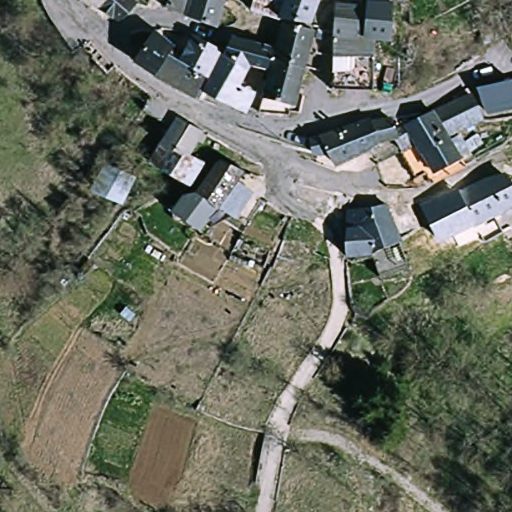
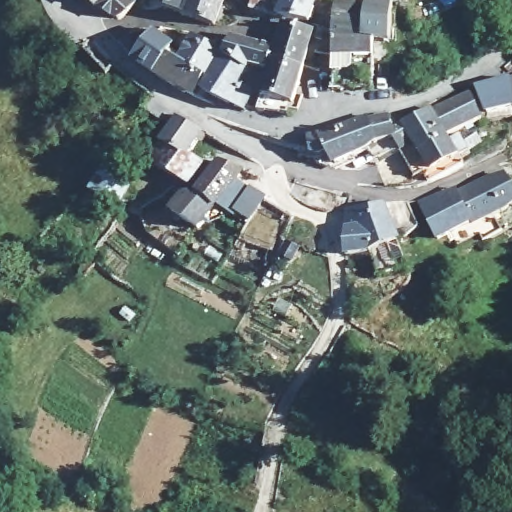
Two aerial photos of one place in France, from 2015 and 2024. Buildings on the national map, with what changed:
unchanged [(106,15),(102,20),(93,11),(97,7),(89,0),(127,0),(133,6),(116,23),(106,15)]
unchanged [(170,0),(222,0),(219,8),(214,28),(181,16),(166,10),(170,0)]
unchanged [(250,10),(253,0),(285,0),(283,16),(250,10)]
unchanged [(283,16),(285,0),(314,0),(309,20),(283,16)]
unchanged [(315,58),(320,30),(334,32),(335,5),(335,2),(366,5),(369,0),(394,2),(394,40),(374,38),(372,58),(369,95),(336,95),(327,95),(330,76),(332,61),(332,58),(315,58)]
unchanged [(512,34),(512,50),(506,38),(485,48),(474,29),(507,17),(512,34)]
unchanged [(271,68),(250,63),(249,65),(243,89),(254,92),(248,111),(244,110),(222,100),(216,109),(195,99),(155,74),(144,68),(140,57),(158,37),(170,47),(173,53),(182,62),(194,40),(218,60),(204,84),(208,88),(225,58),(233,38),(277,49),(285,21),(314,29),(304,69),(296,102),(285,101),(283,112),(268,113),(258,113),(263,96),(271,68)]
unchanged [(512,73),(512,103),(493,106),(488,107),(479,84),(486,82),(507,75),(512,73)]
unchanged [(431,139),(416,148),(412,140),(402,142),(396,123),(426,108),(471,90),(484,115),(448,131),(431,139)]
unchanged [(367,112),(370,118),(391,113),(396,123),(402,142),(383,148),(377,140),(353,153),(339,163),(330,162),(315,157),(312,153),(323,145),(321,129),(339,123),(367,112)]
unchanged [(187,185),(178,180),(150,161),(161,141),(168,126),(174,118),(200,134),(185,155),(201,164),(187,185)]
unchanged [(416,184),(407,163),(420,156),(416,148),(431,139),(448,131),(456,149),(460,159),(416,184)]
unchanged [(122,206),(89,192),(103,162),(135,177),(122,206)]
unchanged [(184,196),(195,192),(219,163),(240,172),(222,196),(212,208),(208,213),(198,229),(173,212),(184,196)]
unchanged [(454,191),(499,175),(509,177),(512,179),(512,205),(469,227),(454,191)]
unchanged [(438,242),(420,206),(454,191),(469,227),(438,242)]
unchanged [(335,214),(339,200),(371,204),(371,212),(386,210),(398,248),(373,258),(347,263),(349,216),(335,214)]

